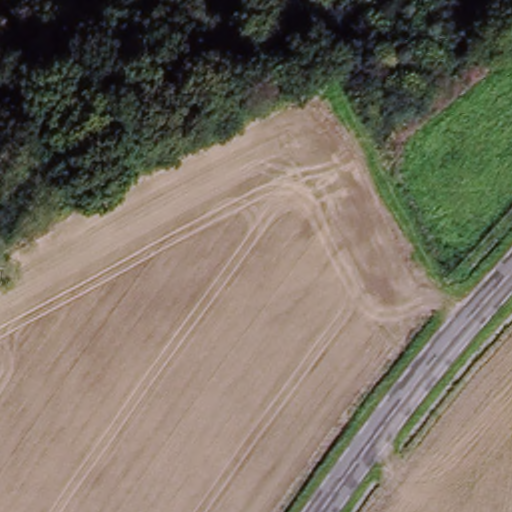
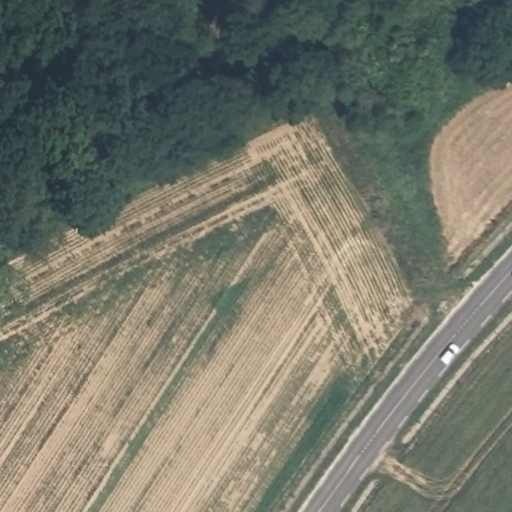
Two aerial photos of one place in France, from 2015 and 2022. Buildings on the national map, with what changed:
[]

